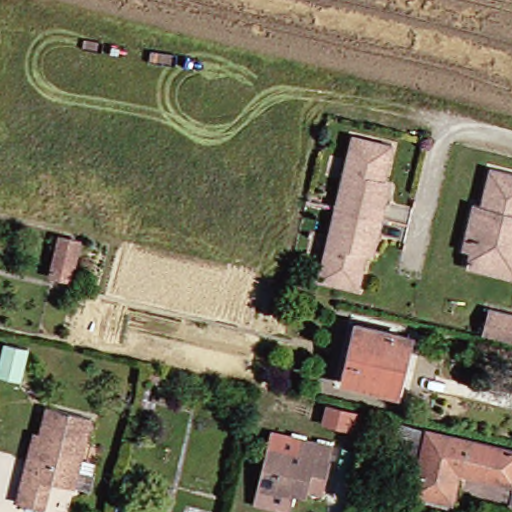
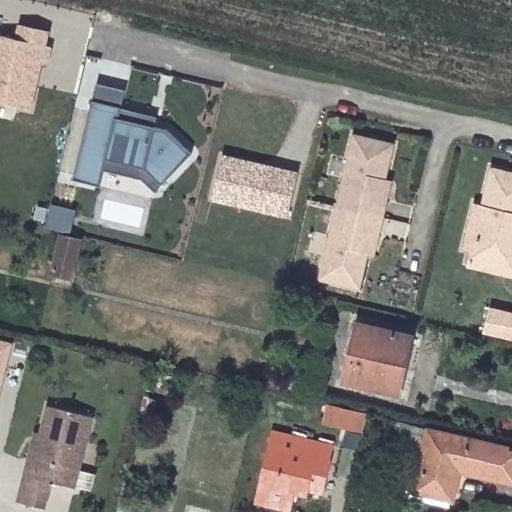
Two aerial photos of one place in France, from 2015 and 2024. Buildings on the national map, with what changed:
new [(27,108),(0,102),(0,33),(49,45),(44,62),(39,62),(33,84),(27,108)]
new [(100,172),(97,186),(71,180),(90,100),(95,82),(123,90),(119,107),(154,116),(151,126),(164,129),(188,152),(157,184),(147,194),(135,182),(100,172)]
unchanged [(377,202),(373,219),(326,207),(343,136),(383,145),(375,180),(382,181),(377,202)]
new [(223,156),(297,174),(287,216),(213,197),(223,156)]
unchanged [(468,205),(476,207),(485,169),(512,175),(512,254),(510,262),(466,252),(458,251),(468,205)]
unchanged [(369,236),(365,256),(358,255),(350,290),(310,280),(326,207),(373,219),(369,236)]
unchanged [(65,280),(45,275),(55,236),(75,240),(65,280)]
unchanged [(512,254),(512,279),(462,268),(466,252),(510,262),(512,254)]
unchanged [(488,307),(512,313),(512,340),(482,332),(488,307)]
unchanged [(392,393),(340,381),(353,325),(405,337),(392,393)]
new [(0,395),(0,339),(13,342),(0,395)]
unchanged [(173,379),(169,396),(158,392),(151,419),(139,416),(150,373),(173,379)]
unchanged [(14,501),(20,474),(25,458),(31,432),(36,433),(43,405),(87,416),(74,472),(90,476),(86,490),(70,487),(47,481),(41,507),(14,501)]
unchanged [(350,432),(313,423),(317,407),(355,415),(350,432)]
unchanged [(411,480),(395,476),(397,470),(380,466),(390,422),(423,430),(411,480)]
unchanged [(453,470),(446,500),(409,492),(411,480),(423,430),(512,450),(512,477),(510,483),(453,470)]
unchanged [(303,491),(302,497),(288,494),(285,512),(249,503),(262,447),(295,455),(298,441),(327,447),(324,462),(325,462),(322,478),(318,495),(303,491)]
unchanged [(129,512),(116,512),(125,473),(138,477),(129,512)]

